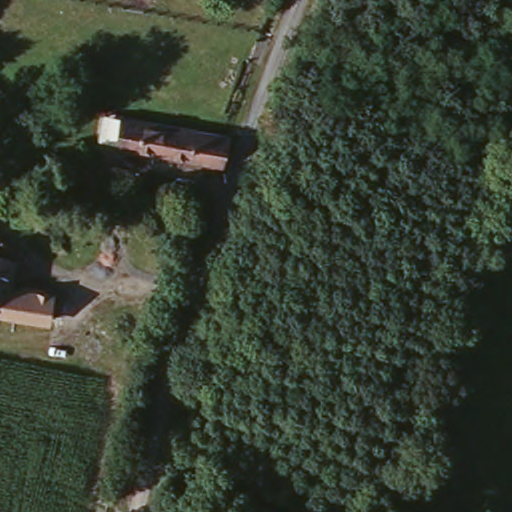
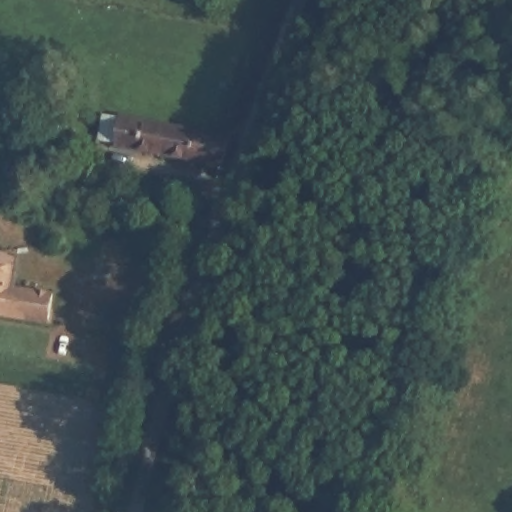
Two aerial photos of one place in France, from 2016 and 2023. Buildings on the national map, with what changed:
unchanged [(98,114),(115,116),(115,115),(222,133),(217,162),(217,161),(214,164),(204,162),(202,159),(111,144),(112,140),(95,138),(98,114)]
unchanged [(2,293),(0,292),(0,241),(15,244),(13,271),(65,281),(60,321),(0,308),(0,303),(2,293)]

